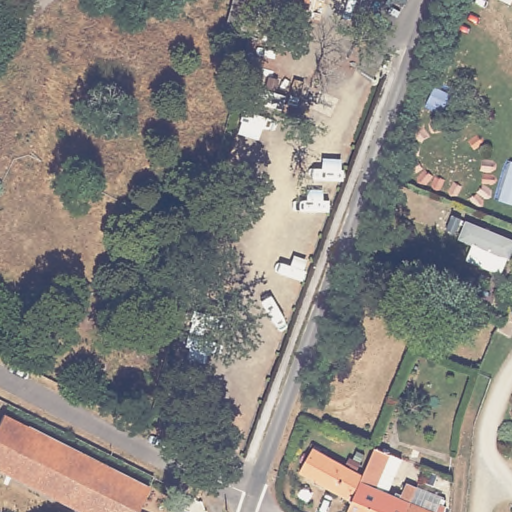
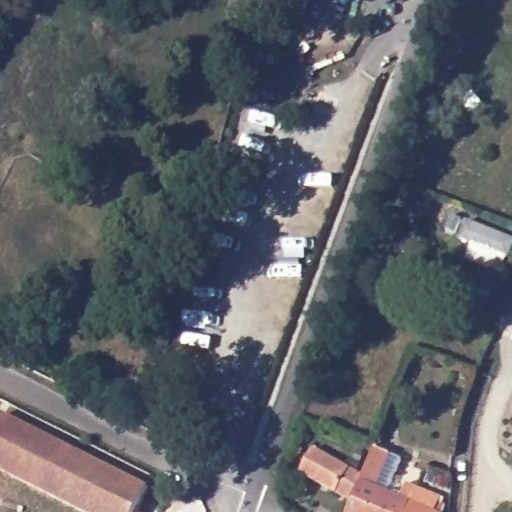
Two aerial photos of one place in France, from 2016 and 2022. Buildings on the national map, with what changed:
unchanged [(261,0),(254,25),(229,19),(234,0),(261,0)]
unchanged [(277,0),(311,0),(309,9),(277,0)]
unchanged [(512,253),(510,259),(460,239),(470,224),(512,240),(512,253)]
unchanged [(147,489),(135,512),(83,512),(0,469),(0,422),(3,416),(147,489)]
unchanged [(312,443),(306,439),(311,432),(318,436),(312,443)]
unchanged [(356,494),(355,499),(305,468),(318,443),(365,474),(356,494)]
unchanged [(356,494),(365,474),(378,444),(392,451),(378,486),(404,497),(410,482),(420,487),(413,502),(425,506),(428,497),(447,504),(446,512),(397,512),(356,494)]
unchanged [(397,512),(349,512),(355,499),(356,494),(397,512)]
unchanged [(143,512),(140,512),(140,511),(143,512)]

